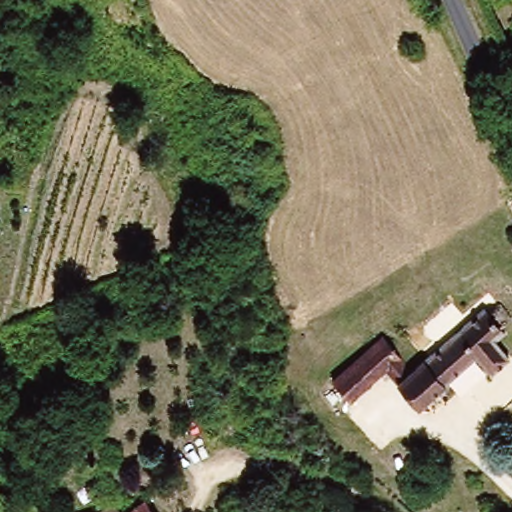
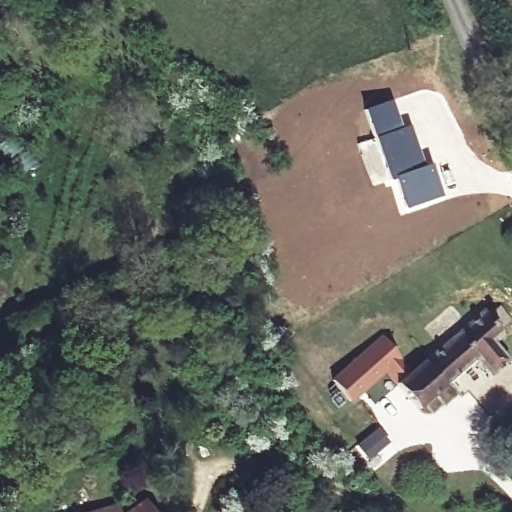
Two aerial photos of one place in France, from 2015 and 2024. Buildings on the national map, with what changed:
new [(394,98),(403,124),(410,121),(426,163),(392,177),(388,178),(364,108),(394,98)]
new [(426,163),(431,160),(443,194),(404,207),(392,177),(426,163)]
unchanged [(387,336),(405,358),(414,369),(487,310),(510,339),(502,346),(512,359),(512,360),(495,374),(483,358),(423,405),(403,380),(399,384),(388,372),(353,401),(335,379),(387,336)]
unchanged [(151,496),(153,499),(161,509),(162,512),(126,512),(151,496)]
unchanged [(114,506),(117,512),(94,512),(114,506)]

